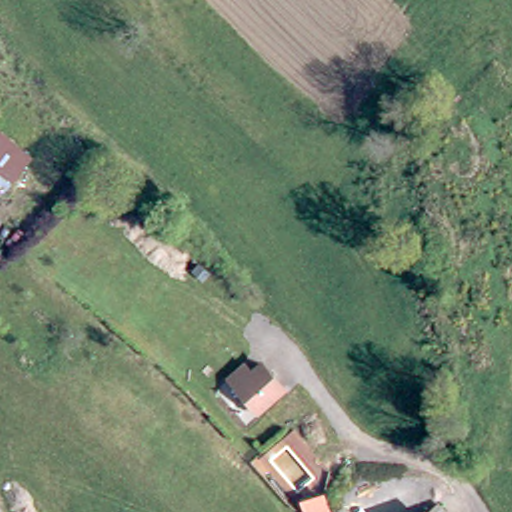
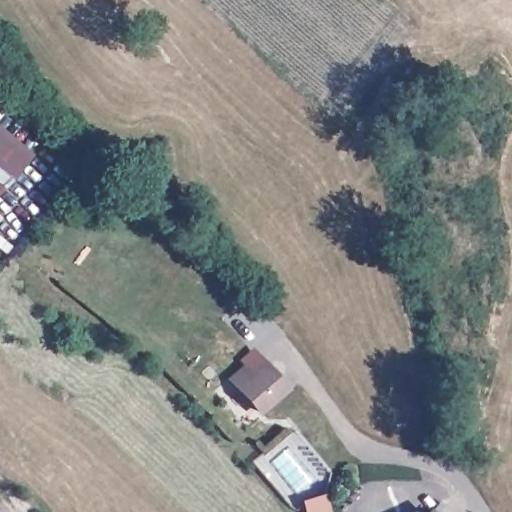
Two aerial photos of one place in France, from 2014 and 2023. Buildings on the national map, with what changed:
unchanged [(0,183),(0,131),(28,159),(0,183)]
unchanged [(284,387),(262,412),(237,390),(229,383),(241,369),(250,377),(259,365),(284,387)]
unchanged [(436,512),(429,512),(433,508),(436,512)]

